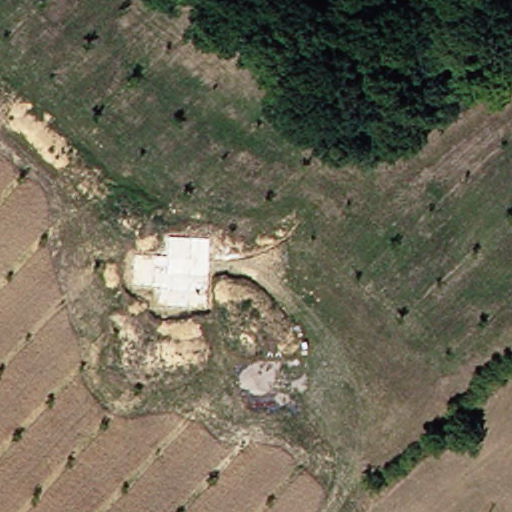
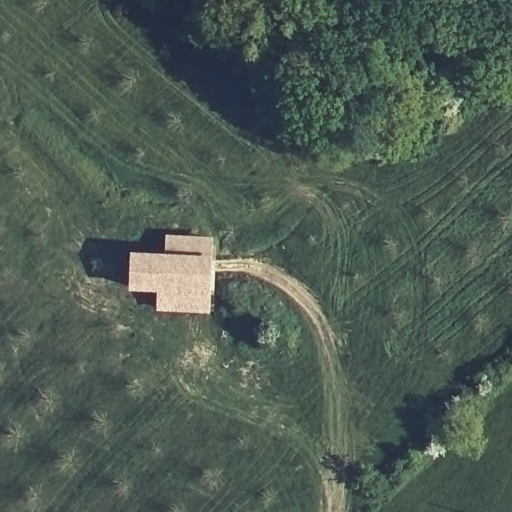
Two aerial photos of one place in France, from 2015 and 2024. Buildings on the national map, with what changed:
new [(207,308),(159,306),(160,287),(131,287),(133,254),(167,255),(167,235),(210,239),(207,308)]

